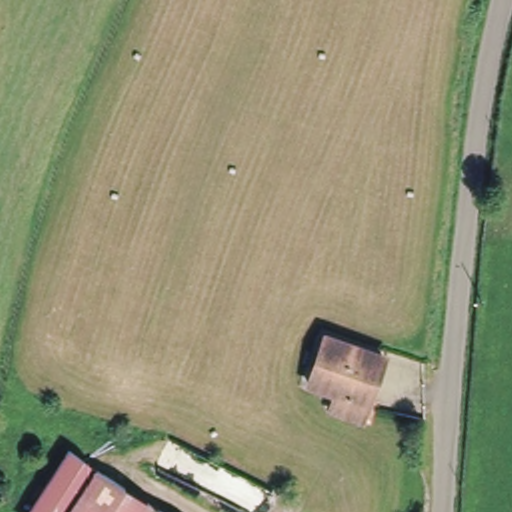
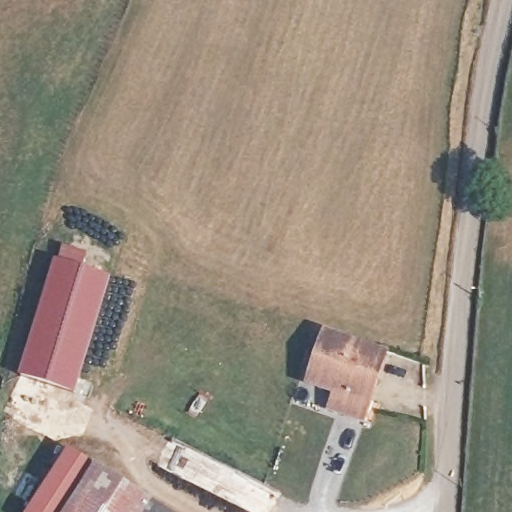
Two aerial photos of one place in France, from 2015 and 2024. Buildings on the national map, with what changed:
new [(55,259),(56,260),(61,247),(86,255),(83,268),(111,278),(75,393),(19,375),(55,259)]
unchanged [(325,386),(345,336),(400,357),(375,422),(343,411),(350,395),(325,386)]
unchanged [(149,499),(141,512),(30,512),(77,449),(149,499)]
unchanged [(168,512),(141,512),(149,499),(168,512)]

